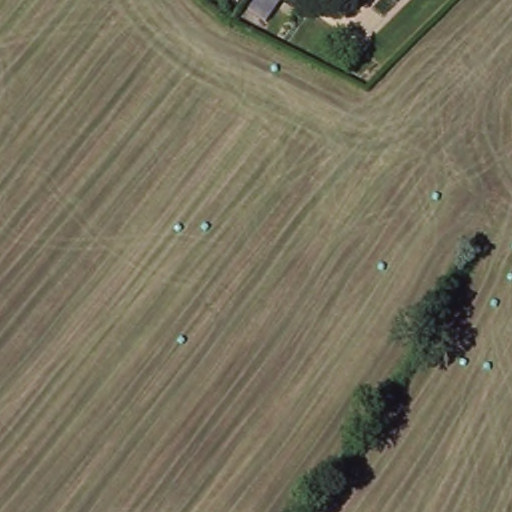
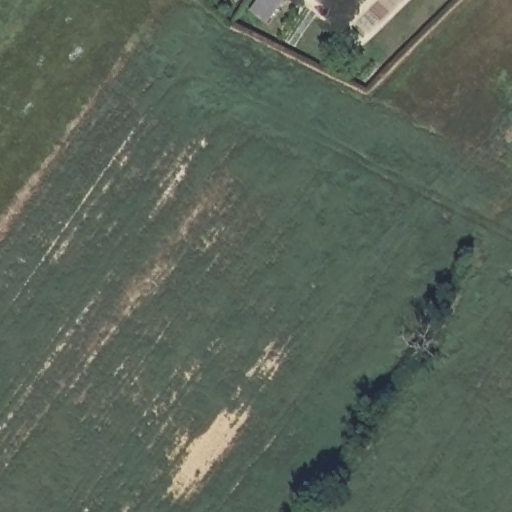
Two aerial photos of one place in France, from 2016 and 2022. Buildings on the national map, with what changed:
unchanged [(252,0),(278,0),(262,22),(244,10),(252,0)]

